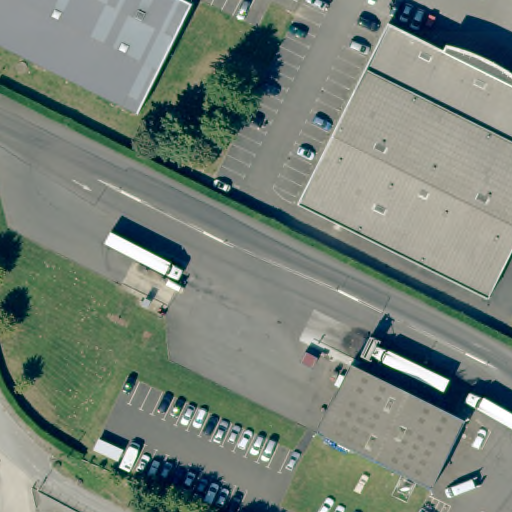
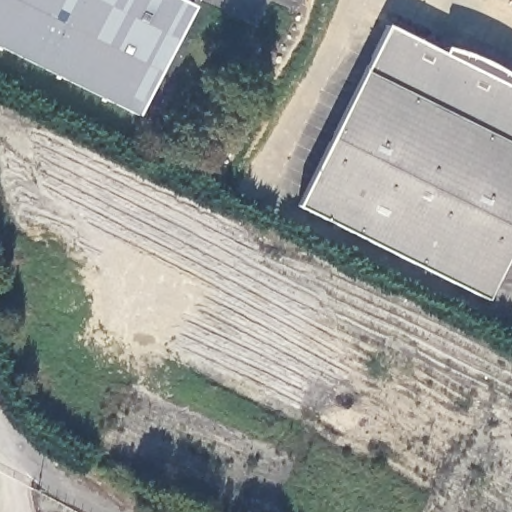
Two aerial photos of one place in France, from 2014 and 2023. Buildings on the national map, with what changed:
unchanged [(189,5),(135,115),(0,47),(0,0),(179,0),(189,5)]
unchanged [(296,205),(381,28),(441,57),(512,93),(512,235),(482,296),(296,205)]
unchanged [(465,54),(489,63),(510,77),(512,79),(512,93),(441,57),(445,50),(465,54)]
demolished [(320,439),(354,369),(431,406),(396,476),(320,439)]
demolished [(463,422),(430,492),(396,476),(431,406),(463,422)]

